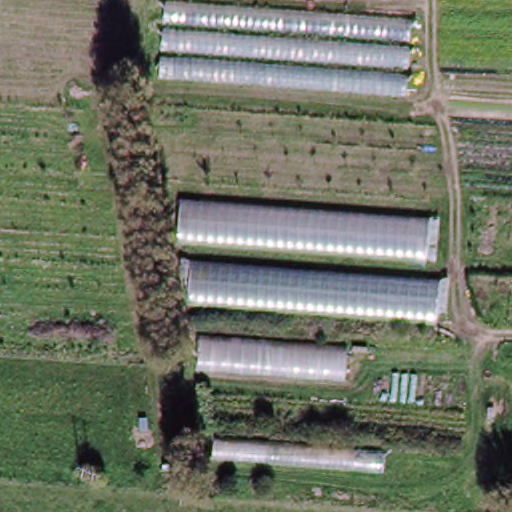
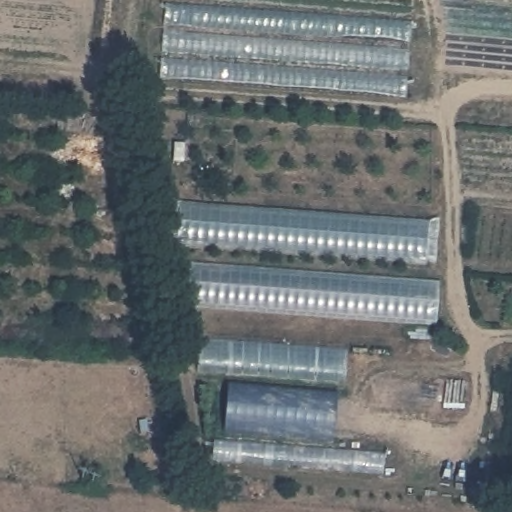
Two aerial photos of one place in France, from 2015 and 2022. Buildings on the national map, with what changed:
unchanged [(412,94),(159,77),(166,1),(417,19),(412,94)]
unchanged [(180,249),(182,206),(427,226),(428,266),(180,249)]
unchanged [(191,310),(192,270),(440,287),(436,329),(191,310)]
unchanged [(201,376),(202,342),(343,351),(347,369),(341,385),(201,376)]
new [(336,389),(332,433),(230,430),(229,384),(336,389)]
unchanged [(305,475),(211,466),(215,443),(382,455),(382,479),(305,475)]

